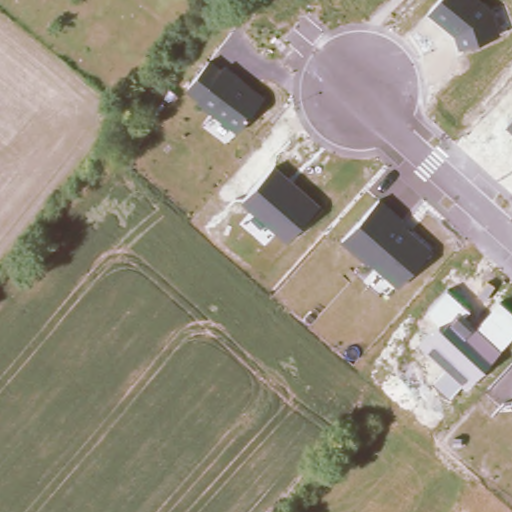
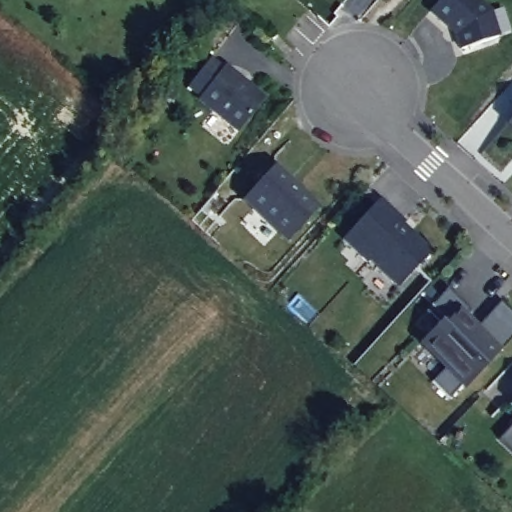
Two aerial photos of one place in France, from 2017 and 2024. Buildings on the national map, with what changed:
unchanged [(483,0),(494,10),(501,37),(459,51),(454,35),(428,14),(439,0),(483,0)]
unchanged [(222,66),(224,64),(266,98),(237,133),(196,101),(198,98),(187,89),(211,58),(222,66)]
unchanged [(512,130),(507,125),(512,119),(512,130)]
unchanged [(276,164),(321,208),(286,243),(242,201),(276,164)]
unchanged [(380,199),(405,221),(404,225),(433,251),(399,289),(369,262),(367,264),(343,241),(380,199)]
unchanged [(445,368),(421,344),(440,324),(428,311),(448,288),(471,310),(465,317),(476,327),(501,300),(512,311),(512,339),(468,390),(463,386),(450,399),(433,382),(445,368)]

